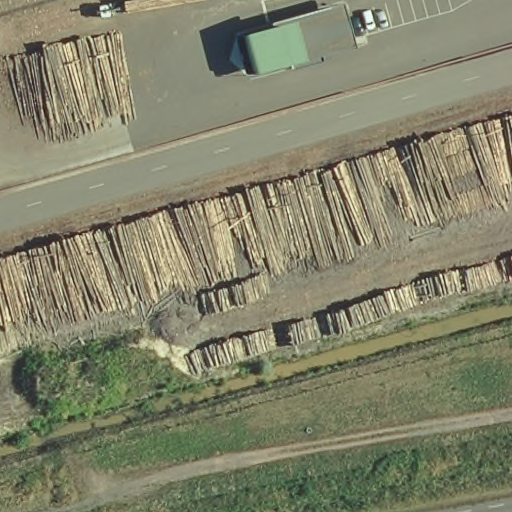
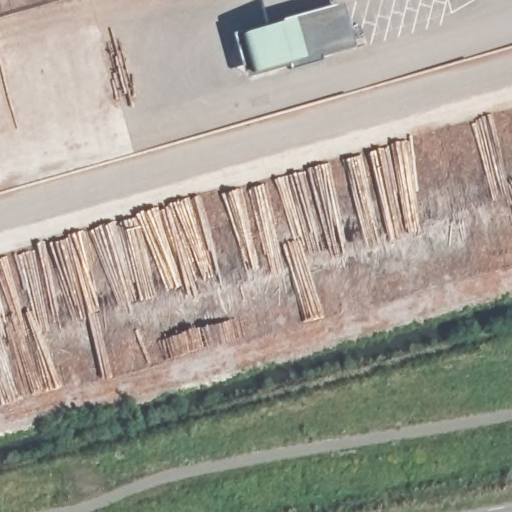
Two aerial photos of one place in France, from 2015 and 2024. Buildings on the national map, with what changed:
unchanged [(241,37),(277,26),(276,22),(346,3),(359,46),(322,57),(323,60),(294,69),(291,64),(251,75),(241,37)]

